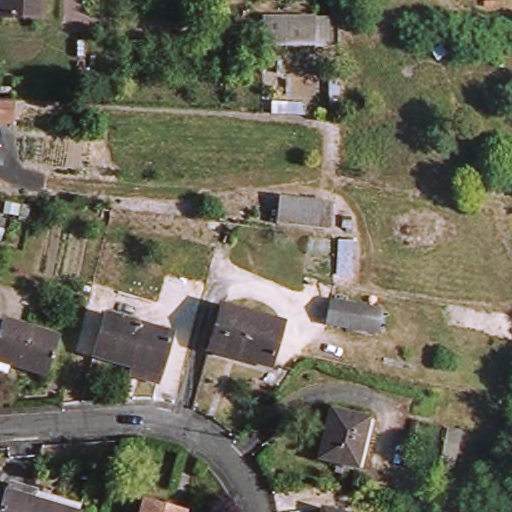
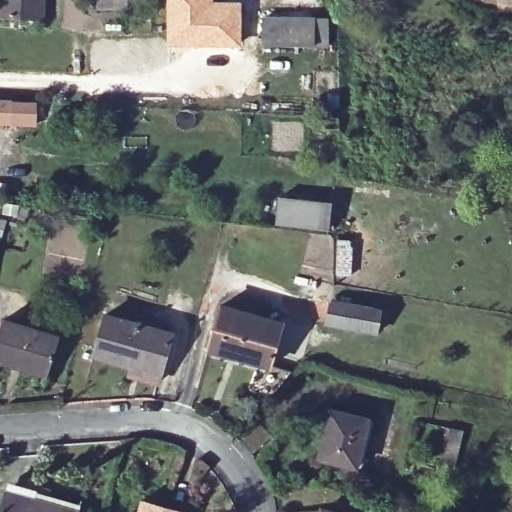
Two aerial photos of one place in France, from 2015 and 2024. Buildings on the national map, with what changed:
unchanged [(5,19),(5,0),(48,0),(47,20),(5,19)]
new [(214,0),(241,1),(241,47),(166,46),(166,0),(214,0)]
unchanged [(335,50),(270,50),(272,18),(337,19),(335,50)]
unchanged [(15,103),(13,125),(0,124),(0,102),(15,103)]
unchanged [(332,207),(331,226),(282,222),(283,203),(332,207)]
unchanged [(342,242),(356,243),(351,280),(338,278),(342,242)]
unchanged [(336,326),(340,300),(386,307),(382,333),(336,326)]
unchanged [(272,362),(214,348),(223,309),(281,322),(272,362)]
unchanged [(100,355),(112,317),(171,335),(159,373),(100,355)]
unchanged [(11,322),(61,340),(50,372),(0,353),(0,350),(11,322)]
unchanged [(324,455),(335,412),(369,421),(358,463),(324,455)]
unchanged [(9,482),(89,502),(86,512),(2,512),(9,482)]
unchanged [(145,508),(160,512),(144,512),(145,508)]
unchanged [(328,508),(342,512),(327,512),(328,508)]

